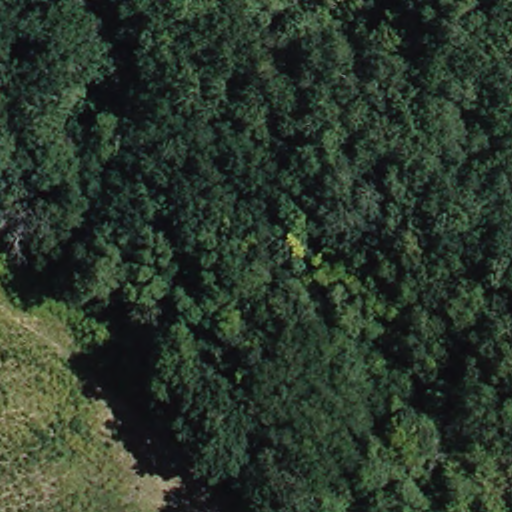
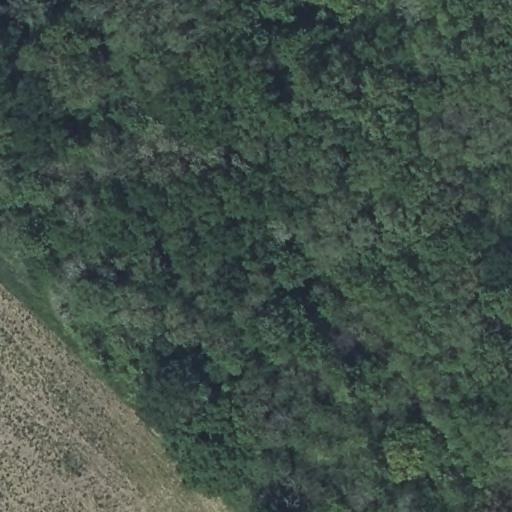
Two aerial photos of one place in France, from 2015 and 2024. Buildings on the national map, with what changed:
[]

